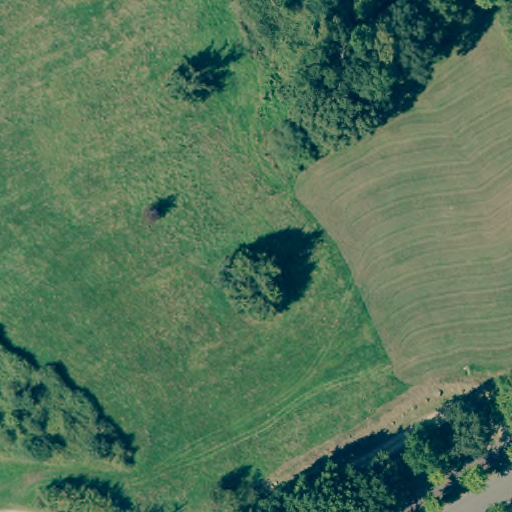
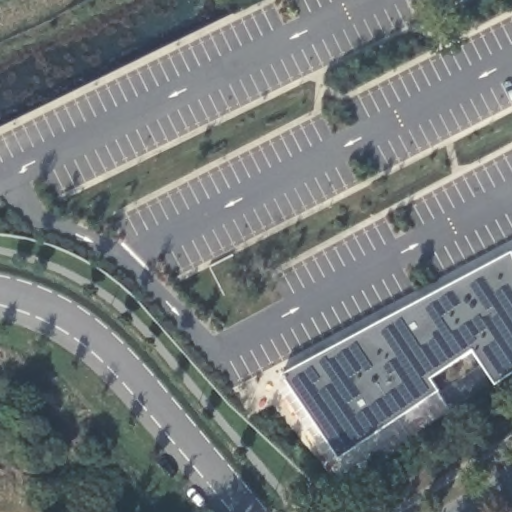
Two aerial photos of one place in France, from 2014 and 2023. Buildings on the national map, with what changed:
new [(511,255),(512,256),(512,375),(495,387),(472,352),(429,380),(438,395),(340,463),(281,377),(511,255)]

